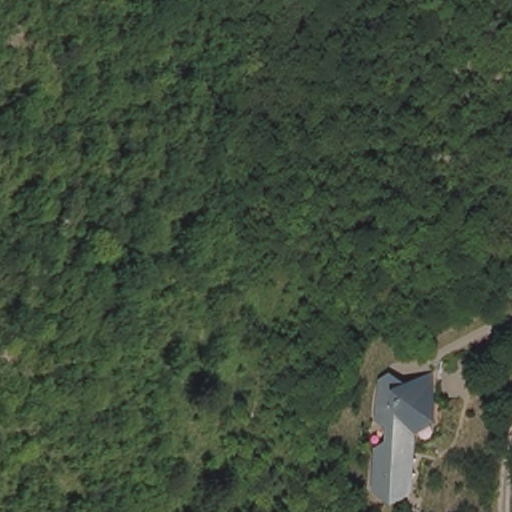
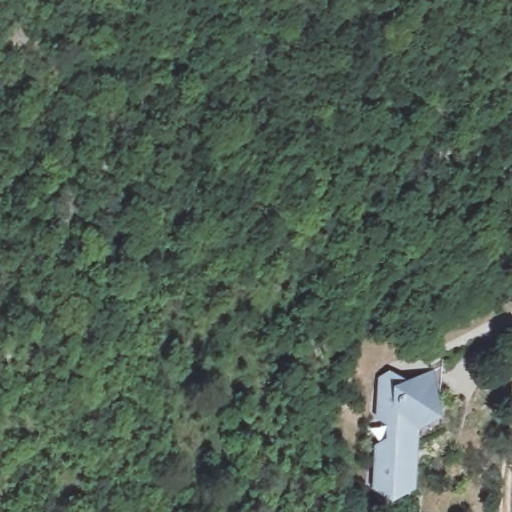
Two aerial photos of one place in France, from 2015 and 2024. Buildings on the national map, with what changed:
unchanged [(394,490),(383,484),(387,442),(399,436),(400,421),(388,412),(391,374),(398,370),(412,378),(417,376),(420,378),(440,368),(445,371),(442,406),(425,415),(423,433),(429,437),(422,447),(428,452),(422,462),(427,466),(420,477),(420,488),(414,491),(403,495),(394,490)]

